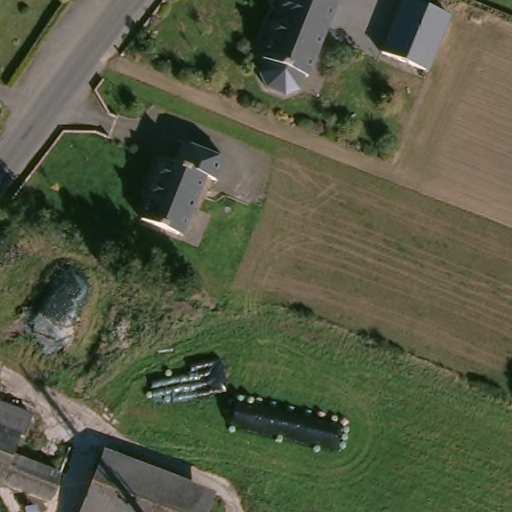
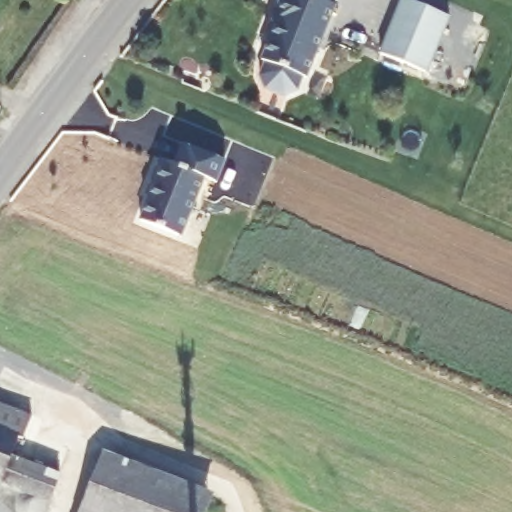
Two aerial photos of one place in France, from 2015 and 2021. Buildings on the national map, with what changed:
unchanged [(323,41),(280,24),(282,17),(277,16),(283,0),(339,0),(323,41)]
unchanged [(395,25),(404,0),(423,0),(453,11),(441,44),(395,25)]
unchanged [(312,71),(307,70),(302,83),(290,89),(272,82),(267,70),(272,56),(268,55),(280,24),(323,41),(312,71)]
unchanged [(385,50),(395,25),(441,44),(432,67),(385,50)]
unchanged [(165,155),(177,158),(183,142),(225,158),(217,179),(204,176),(183,236),(142,219),(165,155)]
unchanged [(36,409),(29,432),(22,430),(15,451),(67,469),(57,497),(0,477),(0,395),(36,409)]
unchanged [(212,495),(206,512),(119,512),(87,500),(104,455),(212,495)]
unchanged [(83,512),(87,500),(119,512),(83,512)]

